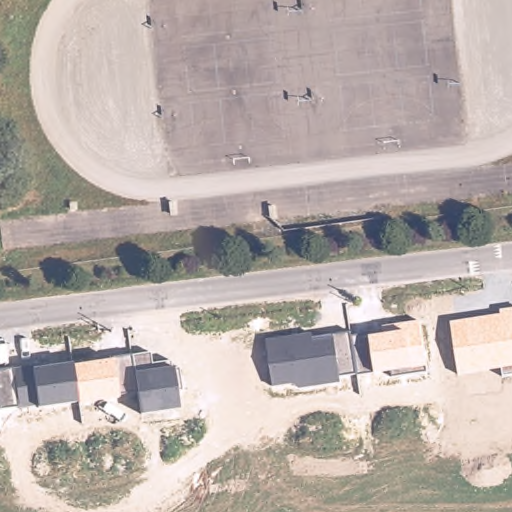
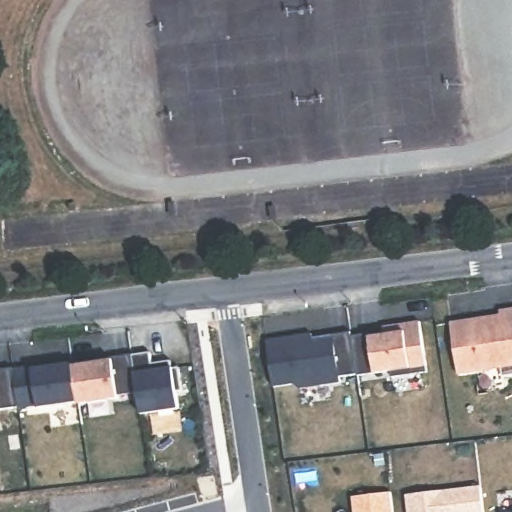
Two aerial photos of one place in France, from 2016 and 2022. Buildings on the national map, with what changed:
unchanged [(501,314),(500,310),(512,308),(512,366),(458,373),(450,321),(501,314)]
unchanged [(351,336),(369,336),(386,333),(385,326),(418,321),(427,371),(392,376),(392,368),(375,372),(358,373),(351,336)]
unchanged [(265,340),(312,333),(313,337),(350,332),(351,336),(358,373),(339,376),(340,382),(297,389),(296,383),(274,386),(265,340)]
unchanged [(72,363),(113,358),(152,352),(155,367),(174,365),(179,366),(183,390),(177,391),(180,407),(142,412),(139,393),(119,395),(77,402),(72,363)]
unchanged [(32,368),(72,363),(77,402),(37,406),(19,406),(0,410),(0,372),(18,369),(32,368)]
new [(403,493),(460,486),(477,484),(481,512),(406,512),(403,493)]
new [(350,496),(388,491),(390,512),(351,512),(350,496)]
new [(512,510),(512,512),(499,512),(499,511),(512,510)]

